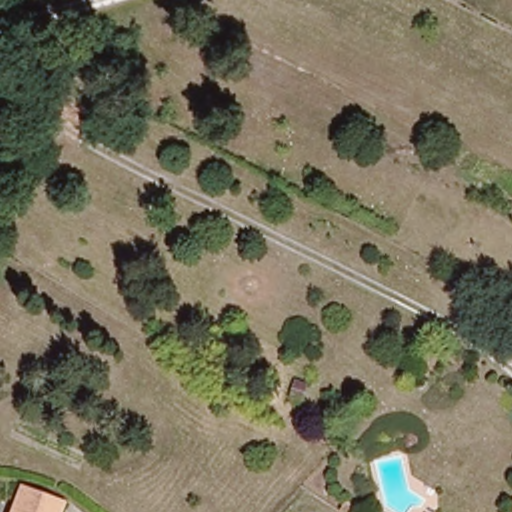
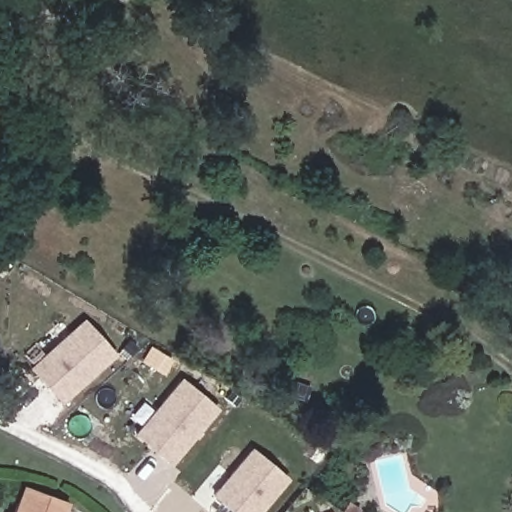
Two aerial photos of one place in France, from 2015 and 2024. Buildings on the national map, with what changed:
new [(81,318),(112,351),(60,399),(30,366),(81,318)]
new [(178,377),(213,407),(169,460),(134,431),(178,377)]
new [(254,512),(235,512),(211,492),(250,447),(284,476),(254,512)]
demolished [(72,503),(68,512),(20,512),(30,486),(72,503)]

